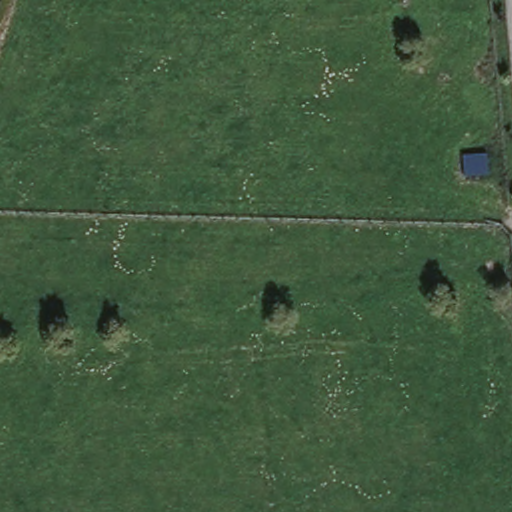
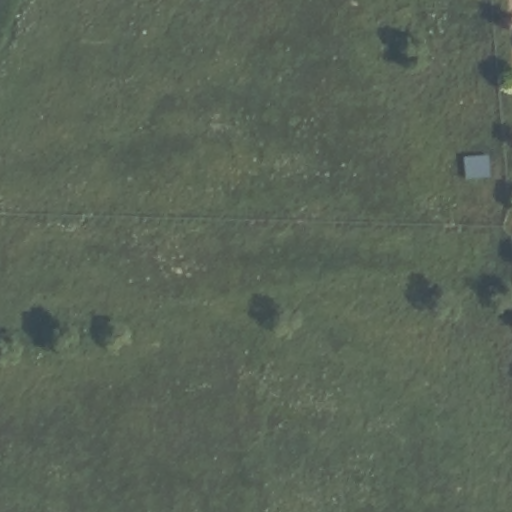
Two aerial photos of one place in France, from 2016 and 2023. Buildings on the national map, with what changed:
unchanged [(488,154),(490,176),(464,179),(462,154),(488,154)]

